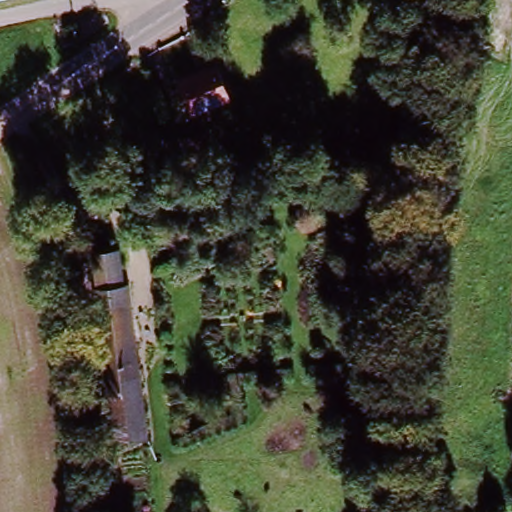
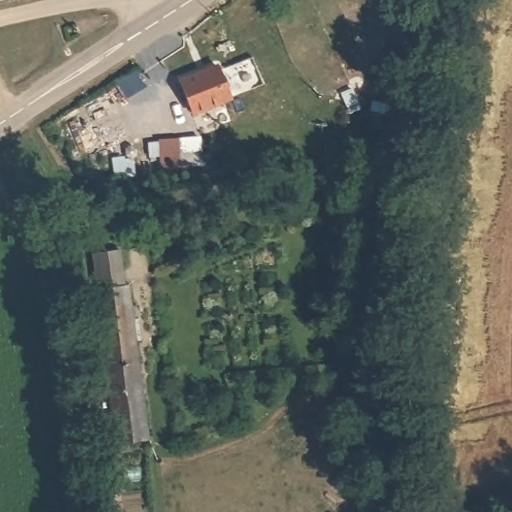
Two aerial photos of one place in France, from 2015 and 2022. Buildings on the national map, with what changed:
unchanged [(220,70),(231,102),(195,114),(185,84),(220,70)]
unchanged [(263,140),(265,151),(272,150),(274,160),(205,165),(205,172),(160,175),(159,141),(263,140)]
unchanged [(183,205),(154,207),(154,194),(183,191),(183,205)]
unchanged [(207,210),(191,210),(191,192),(205,191),(207,210)]
unchanged [(123,244),(147,444),(117,447),(95,248),(123,244)]

